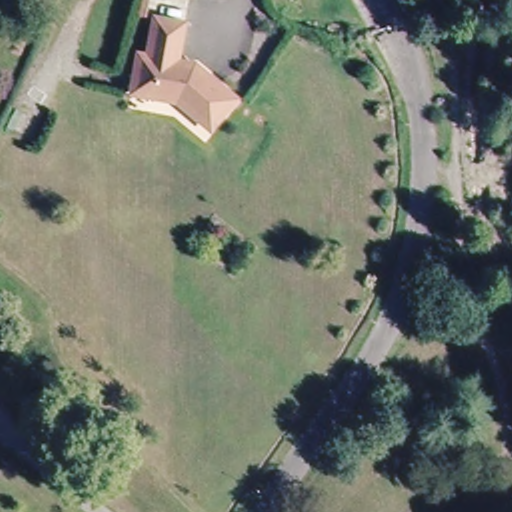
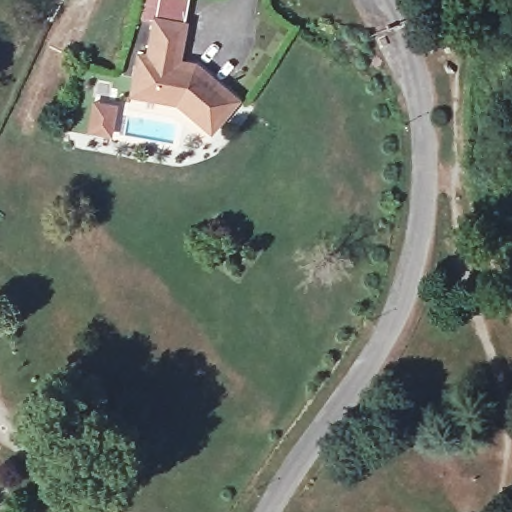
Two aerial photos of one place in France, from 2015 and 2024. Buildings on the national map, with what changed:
unchanged [(127,80),(131,53),(146,54),(151,18),(180,22),(176,51),(234,95),(206,130),(174,103),(139,95),(125,93),(127,80)]
new [(92,106),(113,109),(109,137),(88,135),(92,106)]

